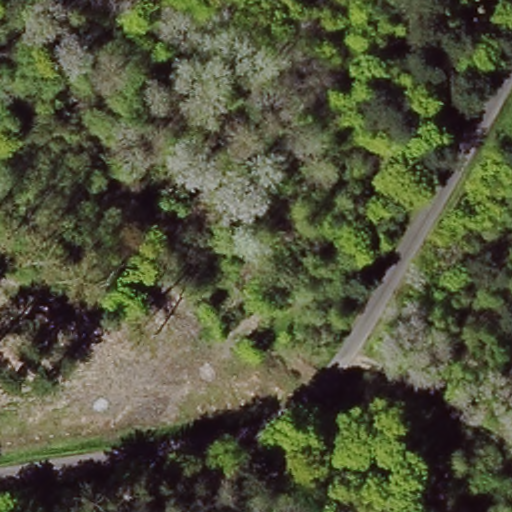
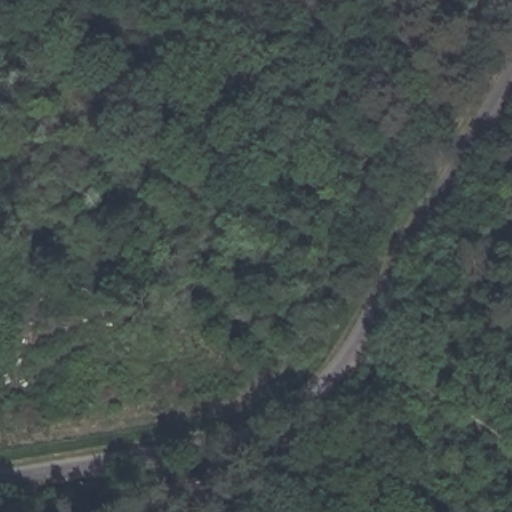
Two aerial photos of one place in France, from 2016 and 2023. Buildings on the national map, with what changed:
[]

